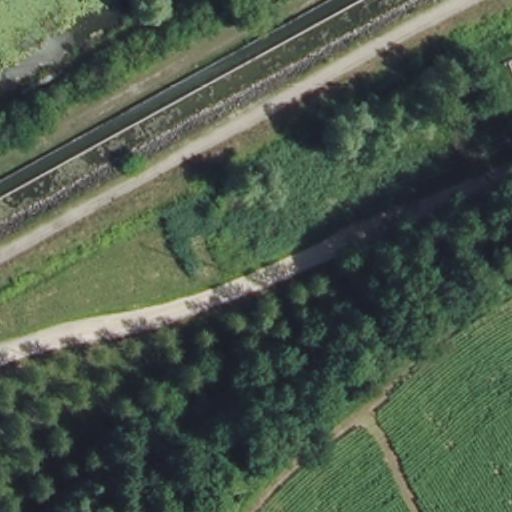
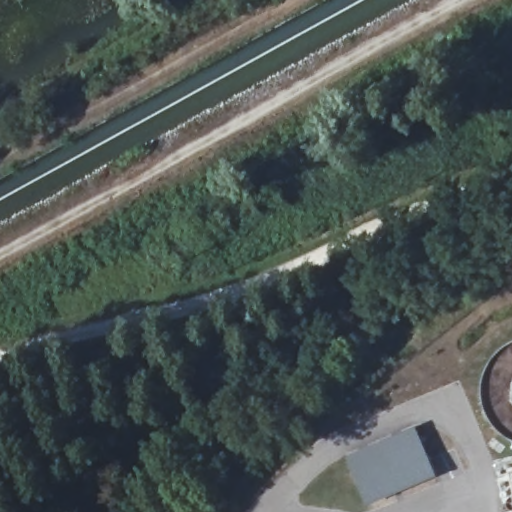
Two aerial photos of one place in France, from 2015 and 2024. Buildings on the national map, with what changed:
new [(422,432),(442,481),(377,507),(357,460),(422,432)]

